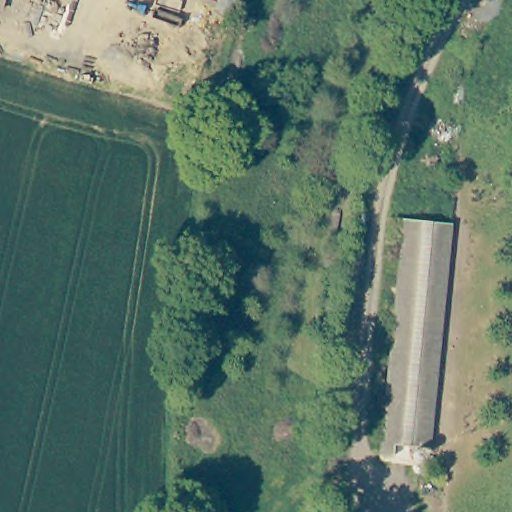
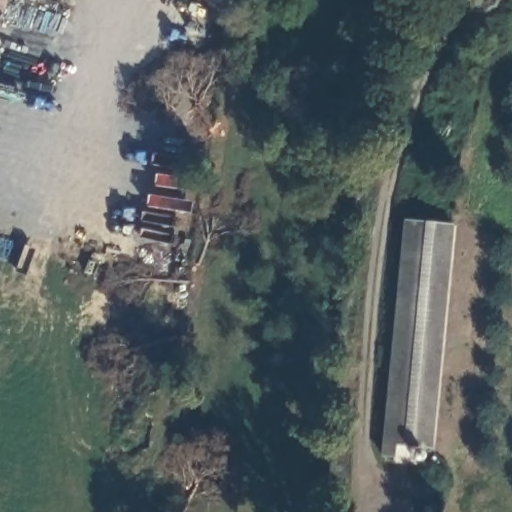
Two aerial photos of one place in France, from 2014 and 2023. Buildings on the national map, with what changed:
unchanged [(0,6),(0,0),(6,0),(4,8),(0,6)]
unchanged [(408,6),(410,0),(438,0),(435,14),(408,6)]
unchanged [(429,443),(395,440),(393,452),(381,451),(403,214),(450,218),(429,443)]

